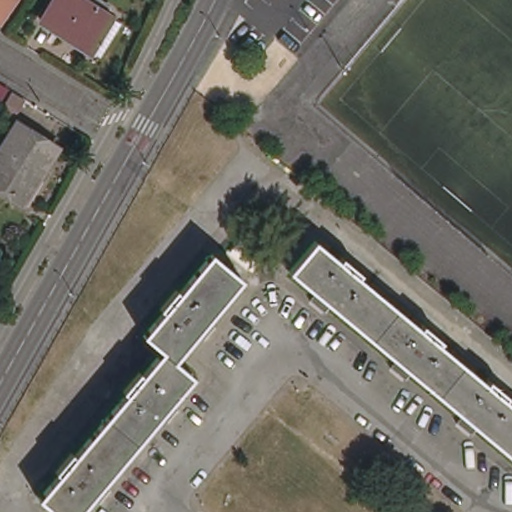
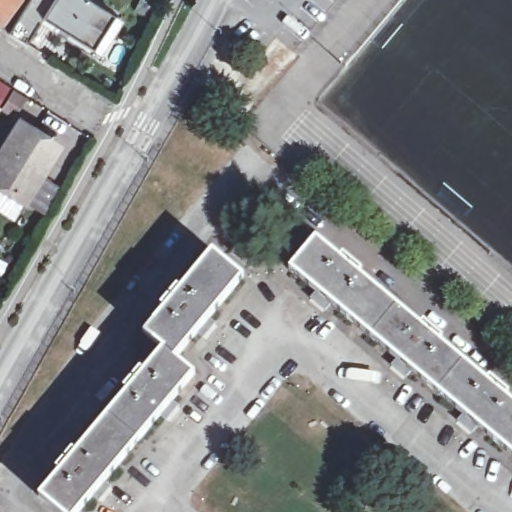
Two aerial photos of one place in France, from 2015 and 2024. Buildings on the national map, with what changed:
unchanged [(12,0),(1,19),(0,18),(0,0),(12,0)]
unchanged [(56,0),(91,0),(113,14),(93,48),(45,19),(56,0)]
unchanged [(9,86),(0,101),(0,80),(9,86)]
unchanged [(22,121),(62,145),(25,202),(17,217),(0,207),(0,157),(22,121)]
unchanged [(342,255),(352,263),(350,267),(422,330),(427,325),(435,332),(432,337),(491,386),(495,383),(503,390),(501,393),(512,402),(512,457),(477,427),(470,433),(457,420),(461,415),(410,372),(405,377),(389,364),(393,358),(325,302),(322,307),(305,294),(310,289),(285,267),(312,237),(339,258),(342,255)]
unchanged [(244,282),(212,318),(219,324),(206,339),(199,334),(176,360),(195,379),(175,405),(181,411),(167,427),(161,421),(107,485),(115,491),(102,505),(95,498),(84,512),(56,512),(36,495),(59,469),(56,466),(63,459),(66,461),(130,388),(125,383),(132,376),(136,380),(161,349),(145,335),(169,306),(165,302),(172,294),(175,297),(212,255),(244,282)]

